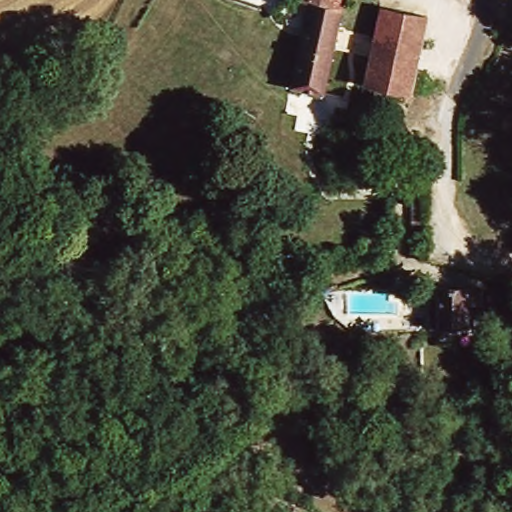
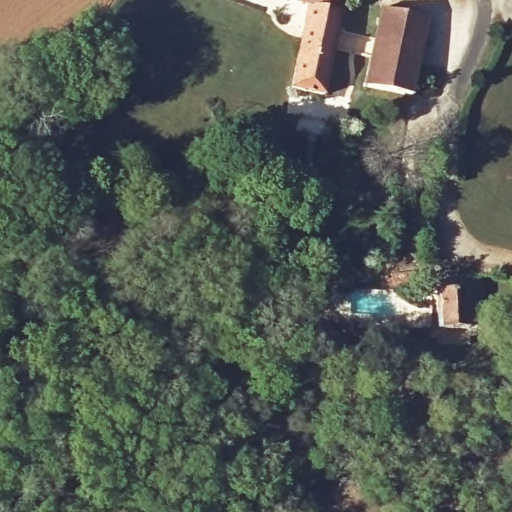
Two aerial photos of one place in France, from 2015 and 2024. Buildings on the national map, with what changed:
unchanged [(285,19),(289,0),(293,0),(338,10),(317,112),(284,106),(298,22),(285,19)]
unchanged [(418,21),(404,97),(358,89),(373,12),(418,21)]
unchanged [(385,290),(382,275),(414,265),(416,282),(385,290)]
unchanged [(430,330),(431,287),(447,288),(465,289),(477,291),(475,332),(445,331),(430,330)]

